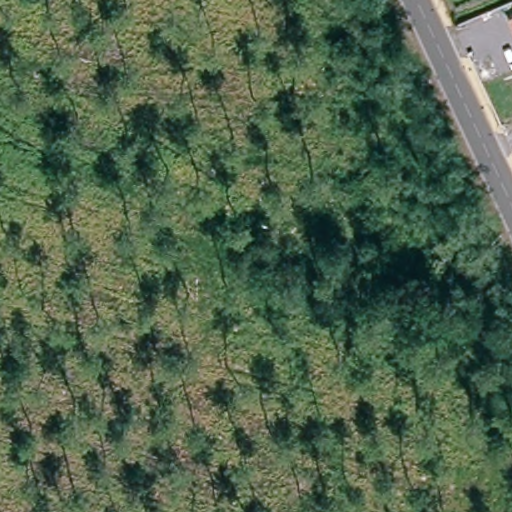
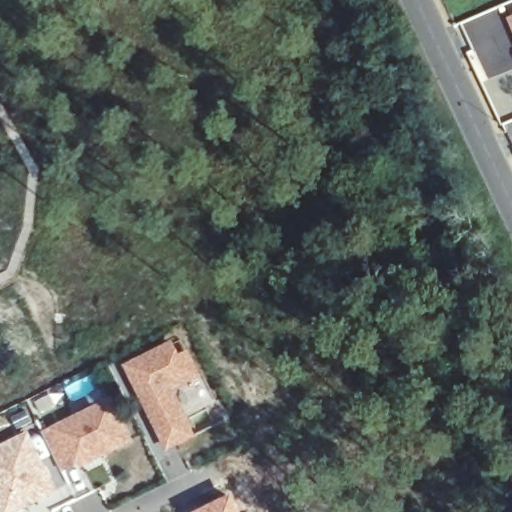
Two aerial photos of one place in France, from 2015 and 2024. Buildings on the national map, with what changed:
unchanged [(512,15),(512,27),(508,17),(512,15)]
new [(180,355),(190,350),(202,377),(175,392),(197,437),(167,453),(123,365),(172,340),(180,355)]
new [(78,470),(77,466),(53,479),(59,493),(18,512),(0,512),(0,445),(29,430),(33,437),(112,396),(134,442),(78,470)]
new [(243,512),(198,512),(233,494),(243,512)]

